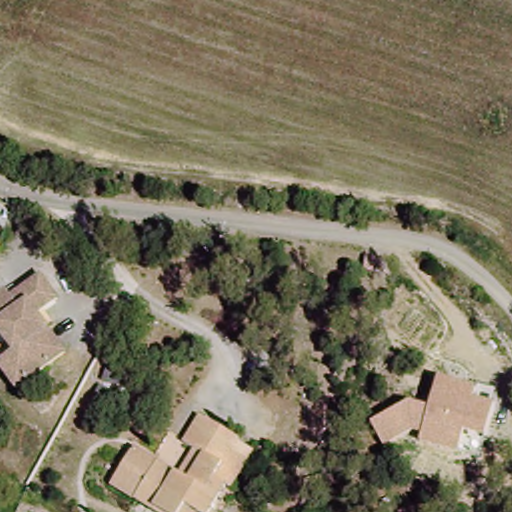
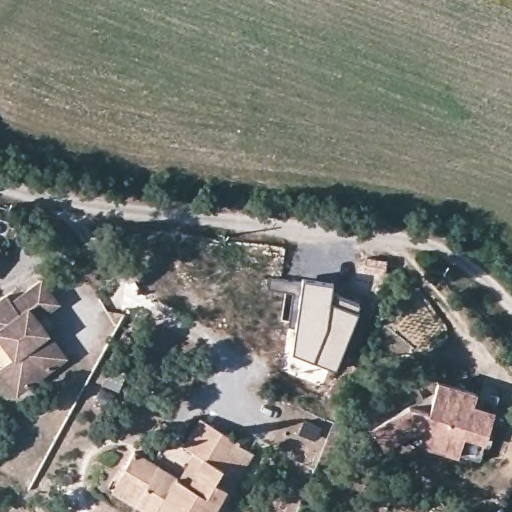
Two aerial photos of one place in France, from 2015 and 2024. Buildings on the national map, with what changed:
unchanged [(5,244),(0,256),(0,243),(5,244)]
new [(333,282),(332,289),(364,302),(359,313),(336,371),(292,354),(303,278),(333,282)]
unchanged [(12,303),(41,280),(58,302),(38,318),(71,359),(24,397),(0,367),(0,302),(7,296),(12,303)]
unchanged [(477,389),(473,401),(497,406),(487,439),(467,435),(460,453),(418,441),(418,436),(411,435),(385,449),(373,424),(412,402),(428,408),(437,382),(477,389)]
unchanged [(112,488),(134,451),(179,478),(194,453),(184,447),(201,418),(239,441),(238,443),(253,452),(230,490),(227,488),(212,512),(152,512),(112,488)]

